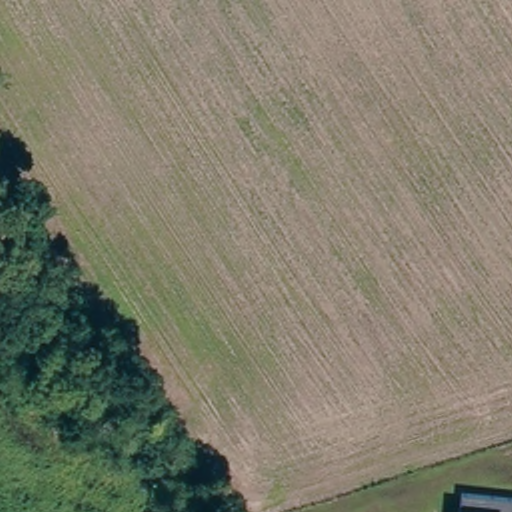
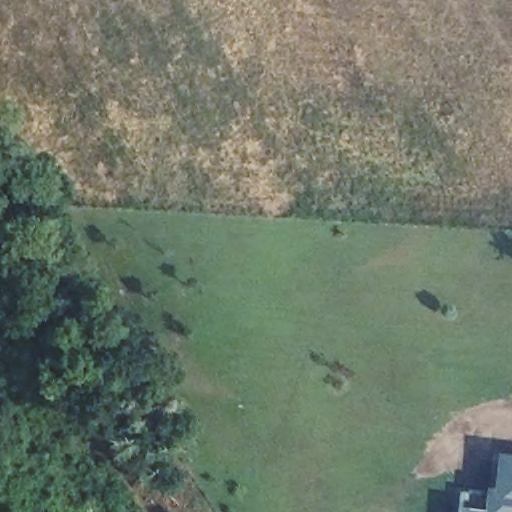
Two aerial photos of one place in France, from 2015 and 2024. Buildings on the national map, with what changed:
new [(492,455),(512,458),(512,500),(483,497),(483,490),(490,490),(492,455)]
unchanged [(459,495),(512,500),(512,512),(455,512),(455,508),(459,495)]

